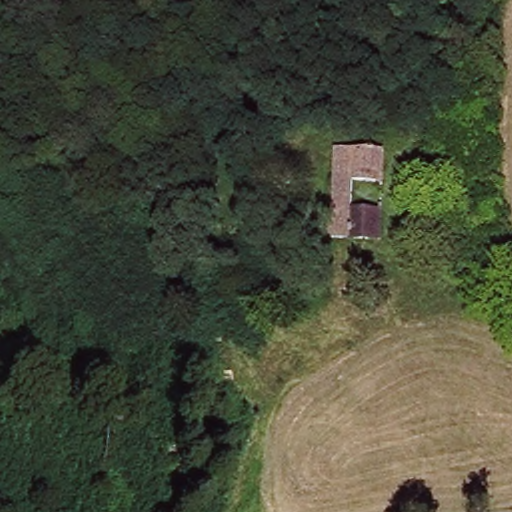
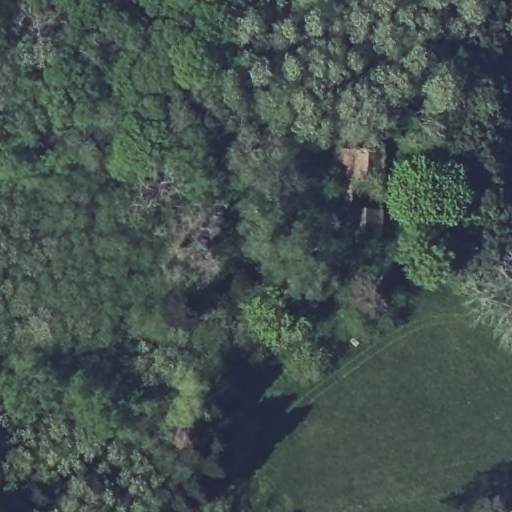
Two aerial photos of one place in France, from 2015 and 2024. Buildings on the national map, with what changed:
unchanged [(399,116),(398,131),(384,131),(376,131),(377,116),(399,116)]
unchanged [(319,221),(339,221),(342,172),(329,172),(330,151),(343,151),(389,152),(384,246),(319,244),(319,221)]
unchanged [(304,229),(304,238),(274,236),(274,227),(304,229)]

